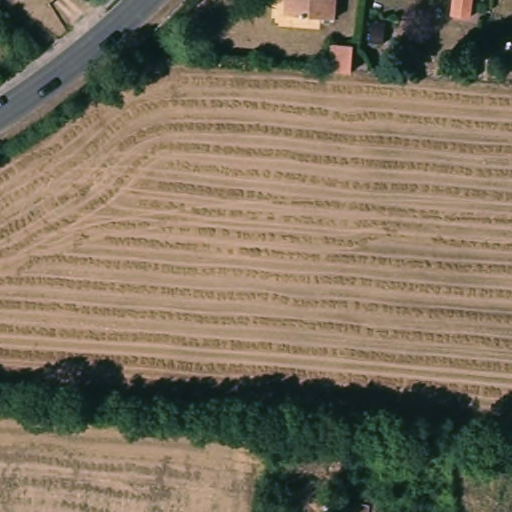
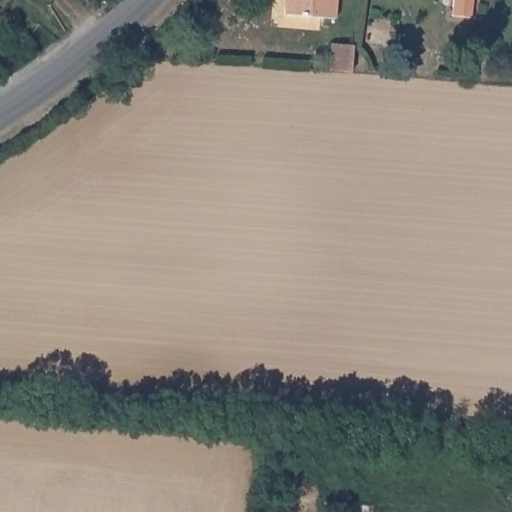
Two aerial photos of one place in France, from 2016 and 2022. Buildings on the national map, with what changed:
unchanged [(290,10),(291,0),(341,0),(340,14),(290,10)]
unchanged [(456,13),(457,0),(477,0),(475,14),(456,13)]
unchanged [(361,40),(357,69),(351,68),(332,65),(335,38),(361,40)]

